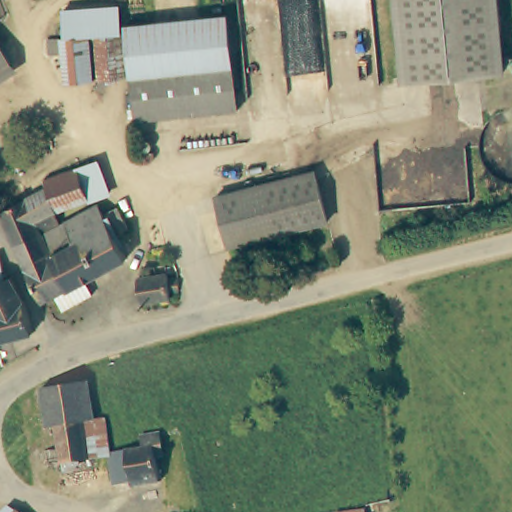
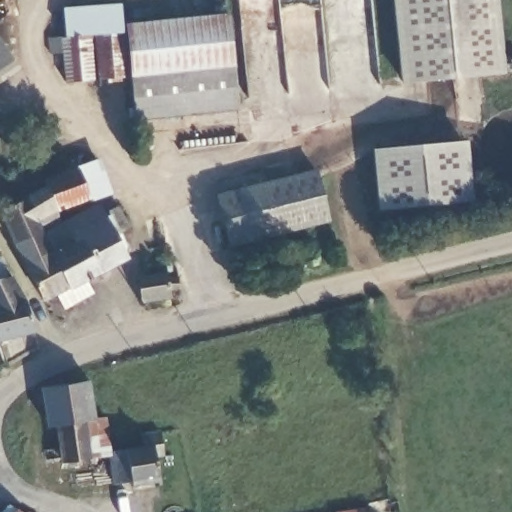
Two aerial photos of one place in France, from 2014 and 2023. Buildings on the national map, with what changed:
unchanged [(402,79),(394,0),(495,0),(502,70),(402,79)]
unchanged [(62,8),(118,3),(121,33),(89,36),(70,38),(65,38),(62,8)]
unchanged [(127,33),(127,25),(230,17),(239,101),(157,110),(135,112),(129,48),(127,33)]
unchanged [(51,40),(65,38),(70,38),(89,36),(92,80),(63,83),(61,51),(51,52),(51,40)]
unchanged [(127,74),(100,75),(97,38),(124,36),(127,74)]
unchanged [(0,39),(3,43),(15,63),(0,73),(0,39)]
new [(473,201),(377,211),(372,148),(468,140),(473,201)]
unchanged [(0,202),(38,187),(35,178),(87,158),(97,186),(47,205),(53,218),(35,225),(18,233),(9,237),(0,219),(0,202)]
unchanged [(215,194),(312,173),(323,224),(225,246),(215,194)]
unchanged [(68,237),(59,218),(96,201),(101,211),(116,203),(127,224),(111,233),(121,254),(80,272),(87,289),(67,297),(45,247),(68,237)]
unchanged [(49,287),(35,293),(12,244),(9,237),(18,233),(35,225),(45,247),(67,297),(54,301),(49,287)]
unchanged [(17,324),(0,329),(0,270),(14,298),(17,324)]
unchanged [(130,276),(159,272),(160,277),(168,276),(170,289),(165,290),(165,294),(132,297),(130,276)]
unchanged [(88,453),(60,458),(52,422),(45,423),(39,385),(85,378),(92,414),(100,412),(105,438),(107,449),(88,453)]
unchanged [(110,448),(122,447),(151,444),(154,479),(126,481),(126,477),(114,478),(110,448)]
unchanged [(12,502),(21,512),(2,512),(12,502)]
unchanged [(358,506),(360,512),(340,512),(358,506)]

